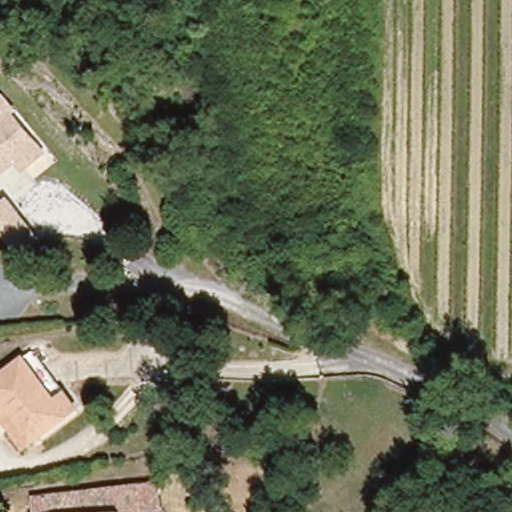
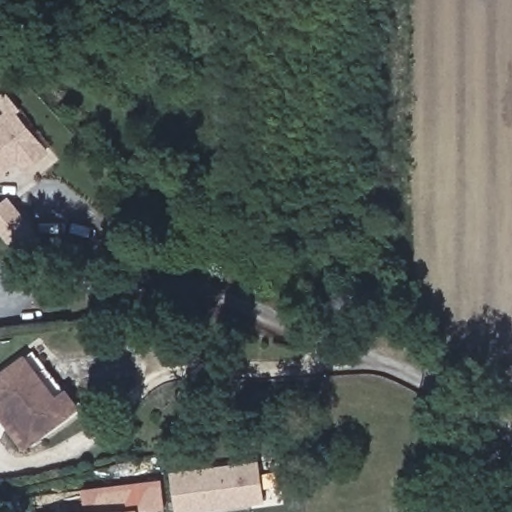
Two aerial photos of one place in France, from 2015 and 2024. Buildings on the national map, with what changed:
unchanged [(49,154),(26,171),(20,163),(0,178),(0,129),(18,115),(49,154)]
unchanged [(39,241),(18,257),(0,233),(0,207),(9,201),(39,241)]
unchanged [(25,354),(70,410),(57,419),(13,363),(25,354)]
unchanged [(57,419),(26,443),(0,409),(0,373),(13,363),(57,419)]
unchanged [(12,453),(0,435),(0,409),(26,443),(12,453)]
new [(175,512),(169,473),(258,461),(264,503),(197,512),(175,512)]
unchanged [(28,512),(27,491),(156,480),(159,512),(28,512)]

